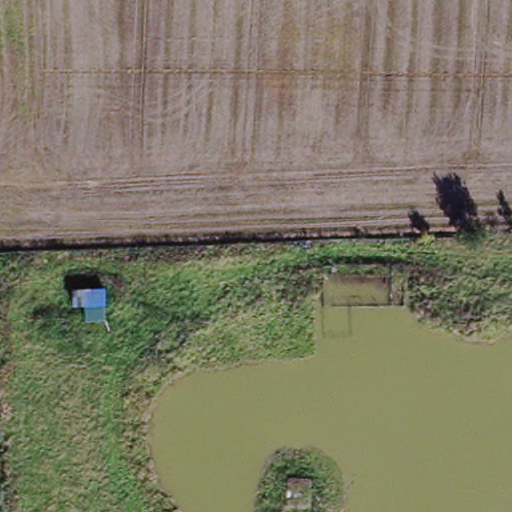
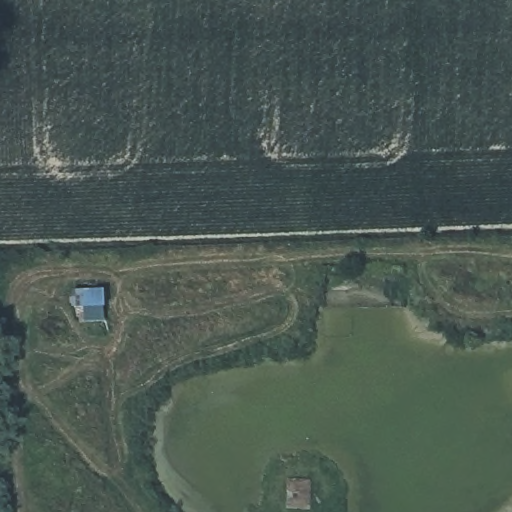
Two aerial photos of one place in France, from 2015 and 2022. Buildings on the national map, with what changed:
unchanged [(76,310),(74,295),(106,288),(111,308),(76,310)]

